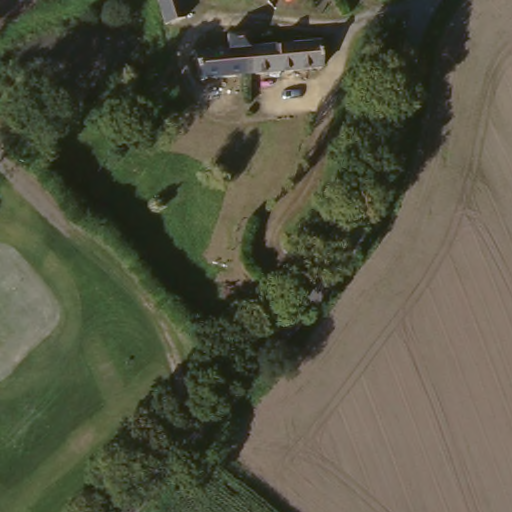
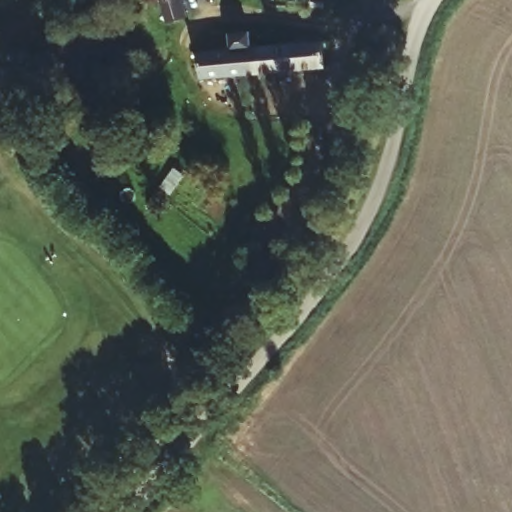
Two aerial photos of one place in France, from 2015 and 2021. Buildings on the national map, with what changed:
unchanged [(152,0),(176,0),(181,10),(161,19),(152,0)]
unchanged [(322,74),(259,72),(200,71),(201,43),(324,43),(322,74)]

